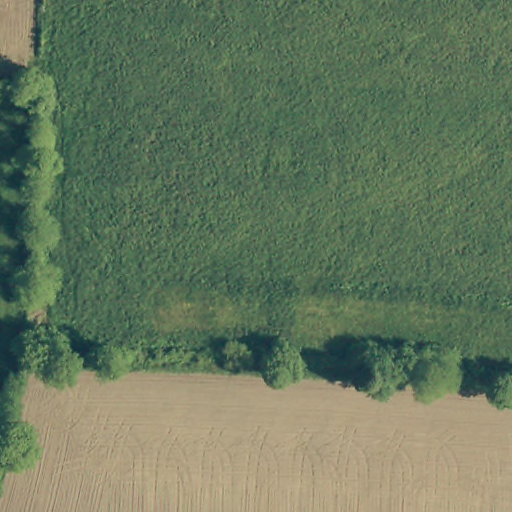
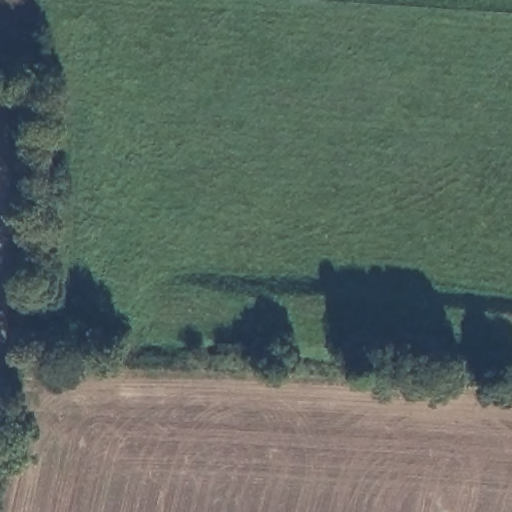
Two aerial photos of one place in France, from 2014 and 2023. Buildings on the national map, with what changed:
unchanged [(62,300),(61,340),(31,337),(35,300),(62,300)]

